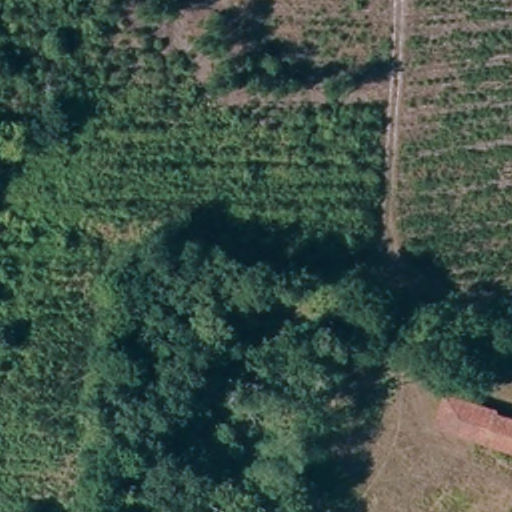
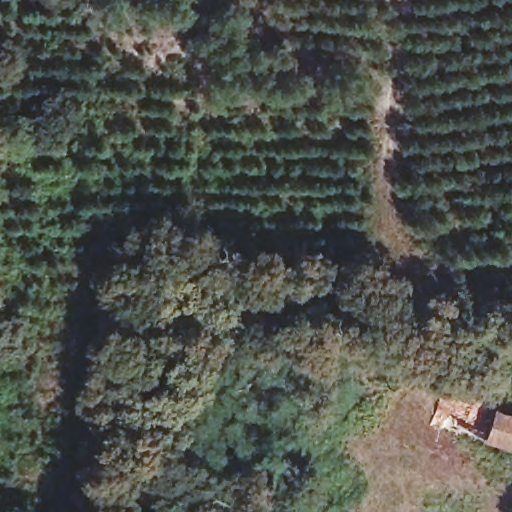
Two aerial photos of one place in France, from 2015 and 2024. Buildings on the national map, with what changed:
unchanged [(443,399),(453,403),(492,420),(512,428),(512,456),(433,423),(443,399)]

